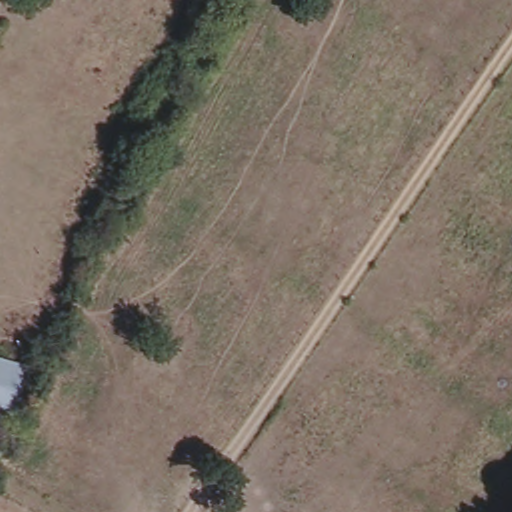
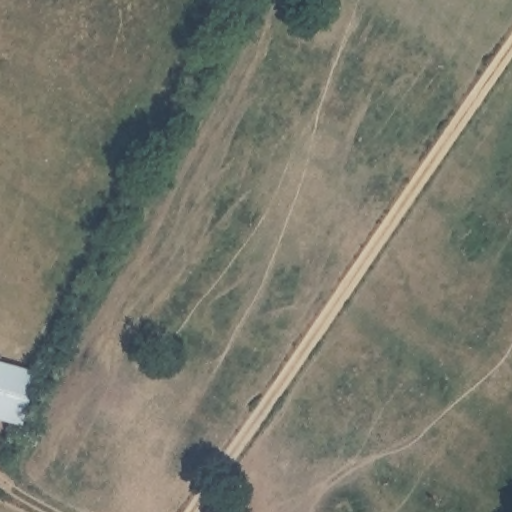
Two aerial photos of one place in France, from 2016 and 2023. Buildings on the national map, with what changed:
unchanged [(17,423),(0,419),(0,361),(30,368),(17,423)]

